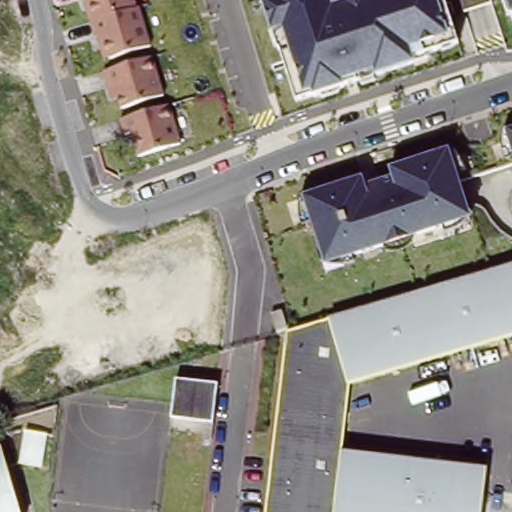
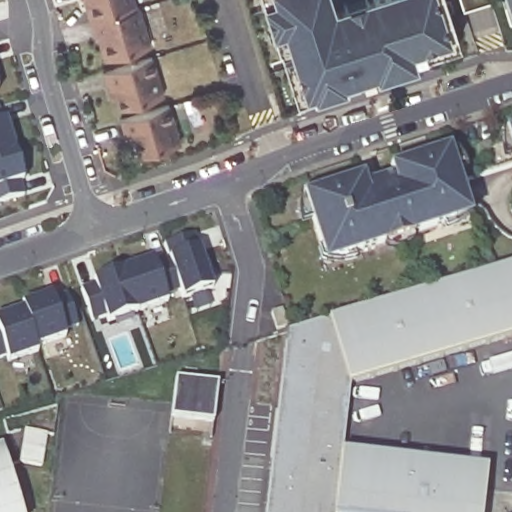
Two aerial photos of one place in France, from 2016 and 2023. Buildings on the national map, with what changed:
unchanged [(152,49),(102,62),(82,0),(137,0),(152,49)]
unchanged [(458,38),(414,52),(417,64),(381,75),(379,69),(348,82),(349,86),(318,95),(314,92),(294,99),(273,35),(262,2),(261,0),(333,0),(334,4),(348,0),(443,0),(458,38)]
unchanged [(509,0),(512,0),(512,10),(509,0)]
unchanged [(153,56),(163,95),(120,109),(101,72),(153,56)]
unchanged [(129,132),(120,136),(118,121),(168,105),(181,147),(136,159),(129,132)]
new [(22,180),(18,181),(23,195),(0,201),(0,122),(4,121),(22,180)]
unchanged [(504,129),(512,126),(512,161),(504,129)]
unchanged [(471,218),(324,267),(301,195),(449,154),(471,218)]
new [(181,298),(179,290),(163,294),(166,303),(106,322),(104,316),(91,320),(79,287),(95,282),(93,278),(153,257),(154,262),(168,257),(163,245),(193,235),(198,250),(212,288),(181,298)]
unchanged [(279,406),(288,328),(296,326),(378,302),(424,288),(512,262),(512,340),(423,366),(378,379),(353,387),(345,457),(388,462),(423,466),(454,470),(488,473),(483,512),(267,512),(268,503),(271,477),(279,406)]
new [(61,329),(65,337),(34,347),(36,352),(7,361),(4,354),(0,355),(0,315),(24,307),(23,303),(52,293),(53,296),(67,292),(78,324),(61,329)]
unchanged [(176,377),(221,381),(216,422),(172,420),(176,377)]
unchanged [(7,464),(21,512),(0,512),(0,454),(3,452),(7,464)]

